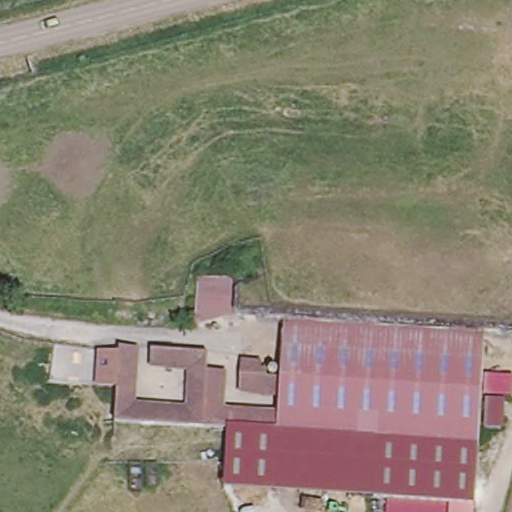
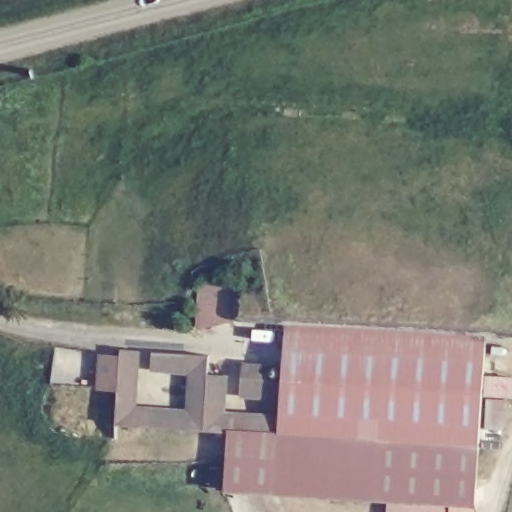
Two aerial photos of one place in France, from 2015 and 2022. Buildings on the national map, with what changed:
unchanged [(228,316),(196,324),(199,279),(231,280),(230,297),(229,310),(228,316)]
unchanged [(282,325),(484,337),(484,349),(281,337),(282,325)]
unchanged [(221,497),(225,433),(198,431),(111,426),(116,350),(133,351),(130,409),(181,412),(185,371),(148,369),(149,352),(204,355),(203,375),(223,375),(221,398),(218,415),(227,415),(246,416),(275,417),(276,396),(238,394),(238,377),(238,362),(256,362),(256,377),(278,378),(281,337),(484,349),(478,448),(477,510),(221,497)]

